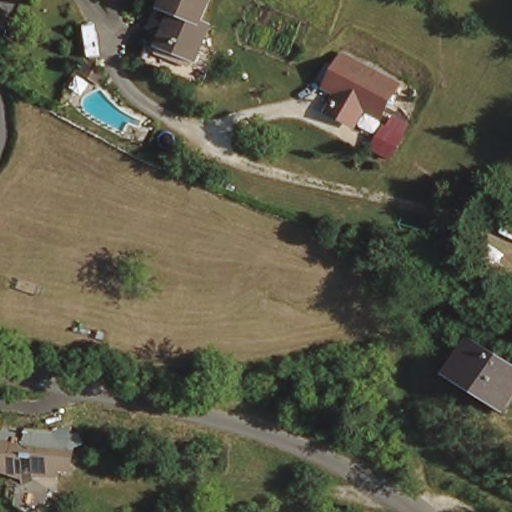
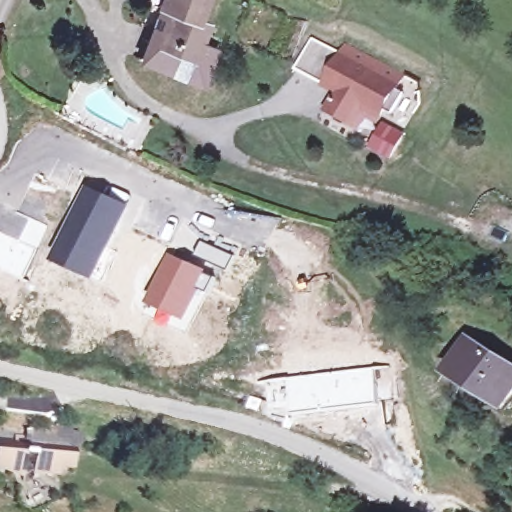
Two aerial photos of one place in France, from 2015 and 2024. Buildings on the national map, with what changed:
unchanged [(201,0),(200,5),(206,8),(202,27),(217,32),(208,65),(144,47),(149,29),(159,32),(163,22),(169,0),(201,0)]
unchanged [(18,49),(0,43),(0,37),(6,11),(26,16),(18,49)]
unchanged [(333,102),(341,84),(329,76),(343,48),(387,68),(398,73),(384,102),(378,100),(368,95),(359,115),(333,102)]
unchanged [(88,77),(83,87),(66,77),(71,69),(88,77)]
new [(87,185),(133,205),(121,236),(99,282),(53,261),(87,185)]
new [(36,246),(31,258),(25,255),(28,251),(17,246),(10,270),(3,267),(4,263),(2,262),(1,257),(2,253),(0,251),(0,239),(3,230),(36,246)]
new [(203,240),(236,255),(229,270),(197,255),(203,240)]
new [(171,253),(211,272),(210,275),(216,277),(209,293),(205,291),(190,325),(148,305),(171,253)]
unchanged [(512,372),(512,392),(507,405),(449,376),(461,347),(512,372)]
new [(374,367),(379,402),(320,410),(314,382),(297,385),(300,411),(293,412),(289,378),(374,367)]
unchanged [(55,441),(68,446),(67,454),(79,457),(77,465),(65,467),(62,475),(56,474),(48,476),(45,488),(15,485),(13,494),(2,497),(0,478),(0,435),(49,456),(55,441)]

